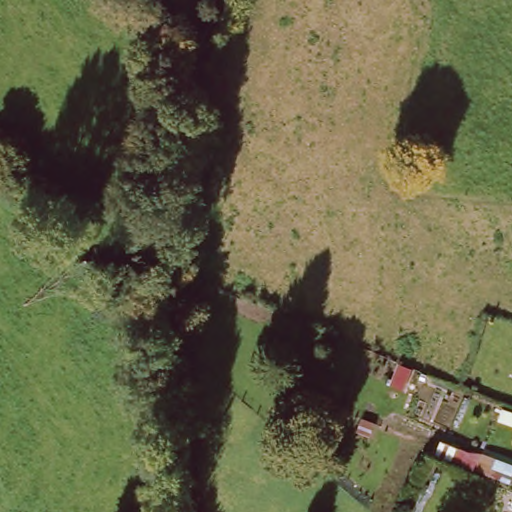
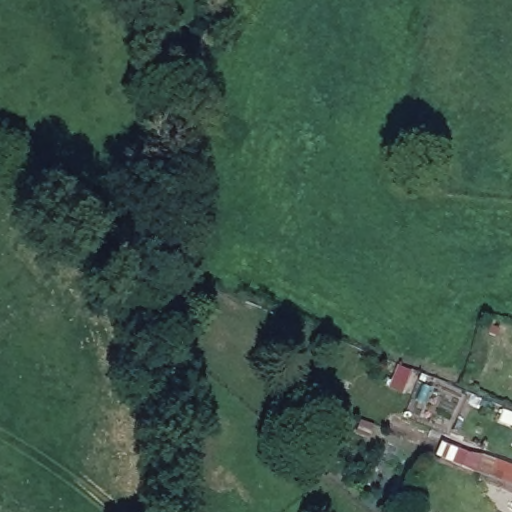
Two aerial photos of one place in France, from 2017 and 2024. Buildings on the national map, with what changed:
unchanged [(449,460),(453,445),(472,453),(472,452),(487,456),(512,467),(512,487),(479,473),(466,467),(449,460)]

